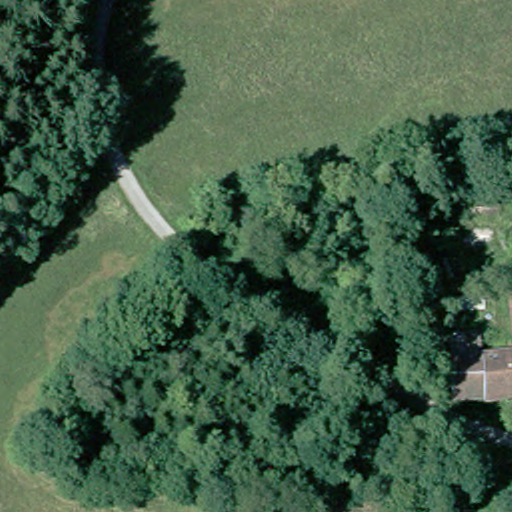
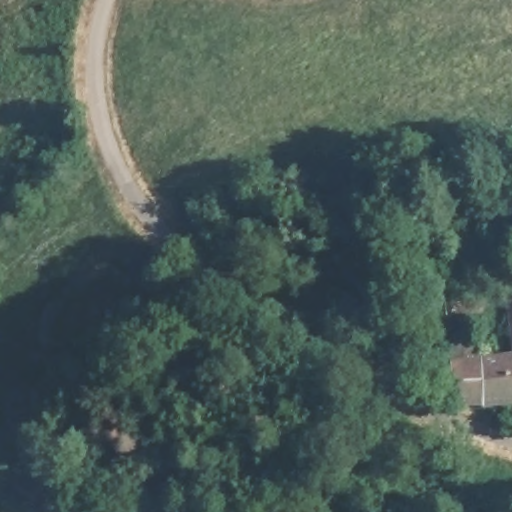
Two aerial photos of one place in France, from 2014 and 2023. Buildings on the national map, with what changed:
unchanged [(479,401),(479,397),(474,339),(484,338),(512,335),(512,397),(479,401)]

